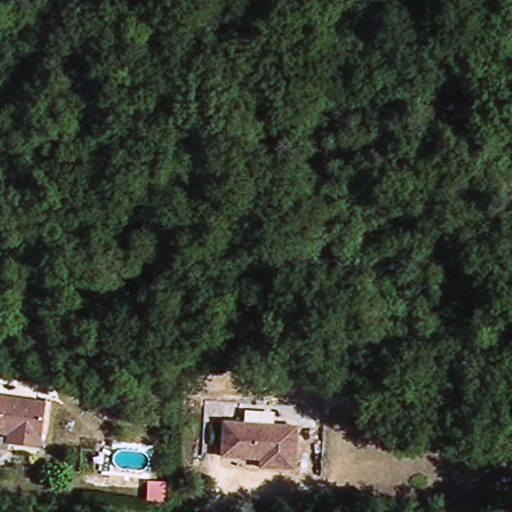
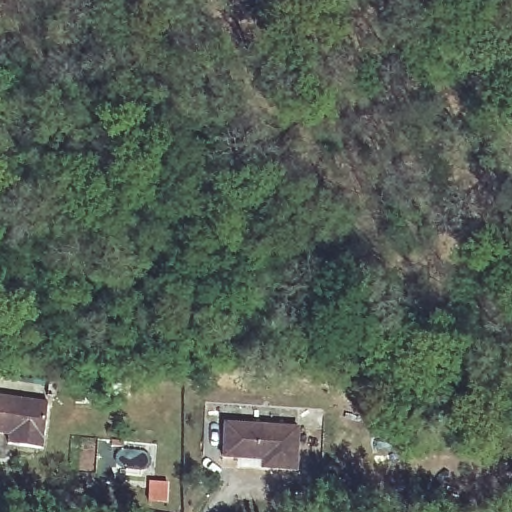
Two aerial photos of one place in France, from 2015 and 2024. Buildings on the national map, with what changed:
unchanged [(41,407),(37,451),(13,450),(0,449),(0,435),(0,404),(41,407)]
unchanged [(293,475),(256,474),(256,463),(219,462),(222,425),(295,428),(293,475)]

